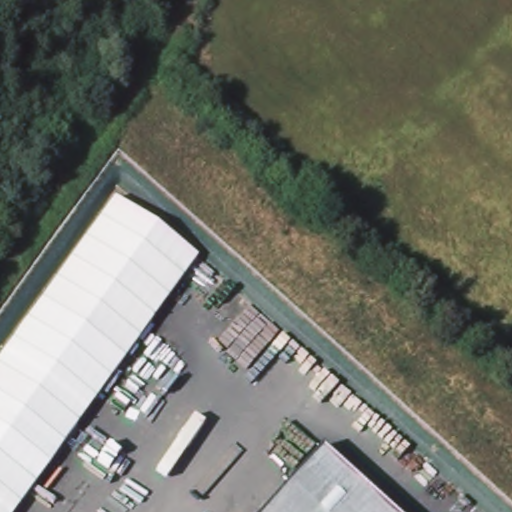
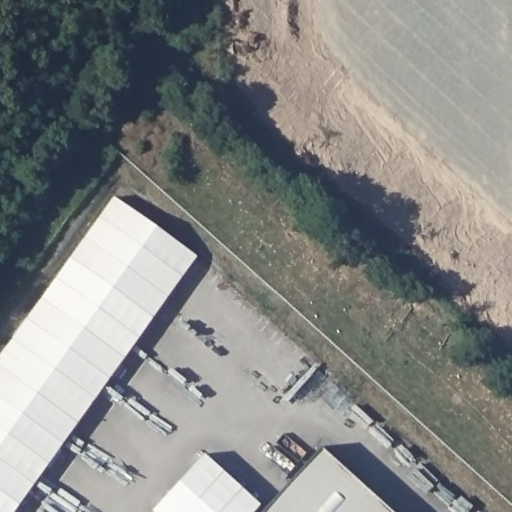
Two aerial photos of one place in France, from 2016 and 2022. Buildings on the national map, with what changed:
unchanged [(112,198),(196,259),(14,512),(0,512),(0,356),(112,198)]
unchanged [(318,449),(388,512),(261,512),(318,449)]
new [(260,504),(252,512),(153,512),(152,512),(204,454),(260,504)]

